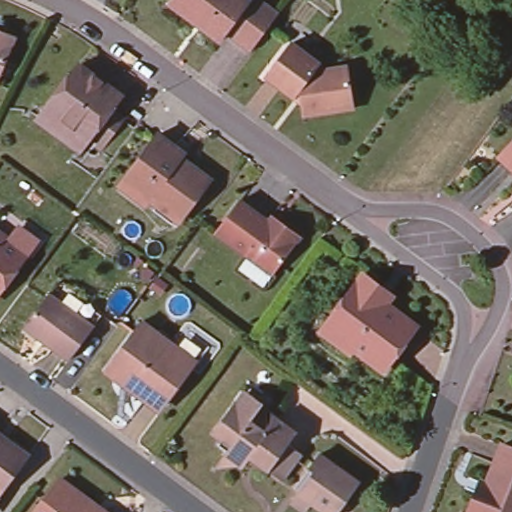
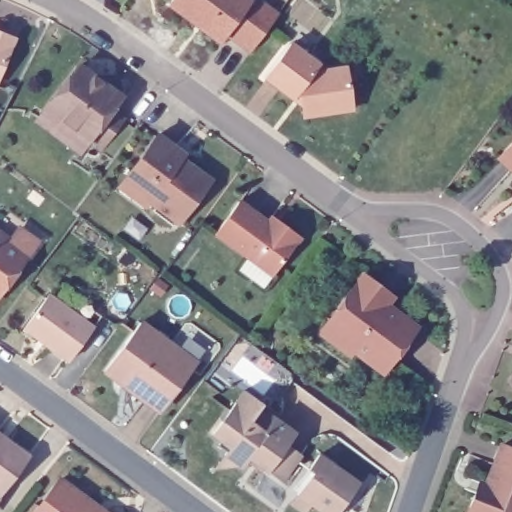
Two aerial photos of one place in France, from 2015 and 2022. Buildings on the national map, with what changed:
unchanged [(163,2),(165,0),(243,0),(245,1),(221,33),(215,40),(163,2)]
unchanged [(253,0),(273,14),(246,51),(221,33),(245,1),(243,0),(253,0)]
unchanged [(15,36),(0,72),(0,29),(15,36)]
unchanged [(325,106),(306,109),(303,99),(300,96),(295,92),(266,71),(291,39),(320,59),(317,61),(323,65),(347,61),(350,83),(353,103),(325,106)]
unchanged [(91,140),(96,134),(88,129),(85,133),(76,144),(33,114),(42,102),(72,59),(83,67),(95,75),(115,90),(106,104),(118,114),(100,138),(96,144),(91,140)]
unchanged [(118,188),(125,177),(155,135),(175,149),(183,154),(180,159),(209,179),(179,221),(151,202),(146,207),(118,188)]
unchanged [(508,174),(493,159),(512,139),(512,174),(510,172),(508,174)]
unchanged [(271,217),(282,224),(300,237),(273,275),(215,234),(238,202),(267,223),(271,217)]
unchanged [(10,246),(20,233),(36,245),(26,258),(0,294),(0,239),(10,246)]
unchanged [(358,348),(352,343),(347,349),(318,328),(328,314),(360,269),(377,282),(388,289),(382,298),(413,320),(381,364),(372,378),(348,361),(358,348)]
unchanged [(93,324),(66,359),(23,327),(48,292),(93,324)]
unchanged [(190,368),(160,409),(123,382),(118,388),(99,374),(135,327),(190,368)]
unchanged [(238,463),(235,468),(233,466),(205,471),(217,454),(219,452),(209,445),(215,439),(205,432),(227,401),(236,389),(256,403),(254,408),(287,431),(278,443),(293,453),(273,480),(255,467),(251,473),(238,463)]
unchanged [(27,454),(0,492),(0,434),(27,454)]
unchanged [(512,512),(469,512),(466,511),(475,489),(478,478),(486,482),(500,442),(512,446),(512,512)]
unchanged [(308,507),(304,512),(296,512),(288,506),(295,497),(310,475),(305,472),(317,456),(357,486),(343,505),(338,512),(315,512),(308,507)]
unchanged [(58,478),(98,507),(105,512),(33,512),(58,478)]

